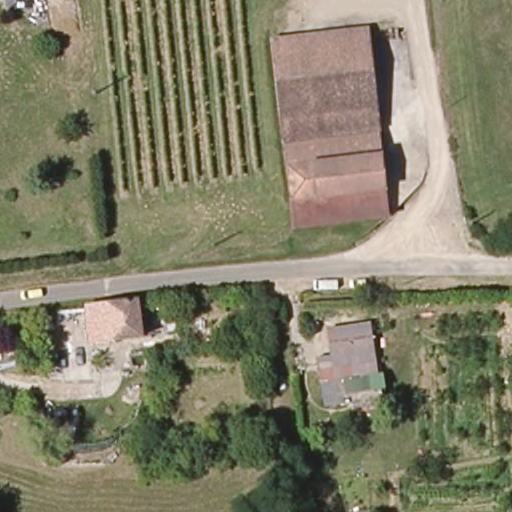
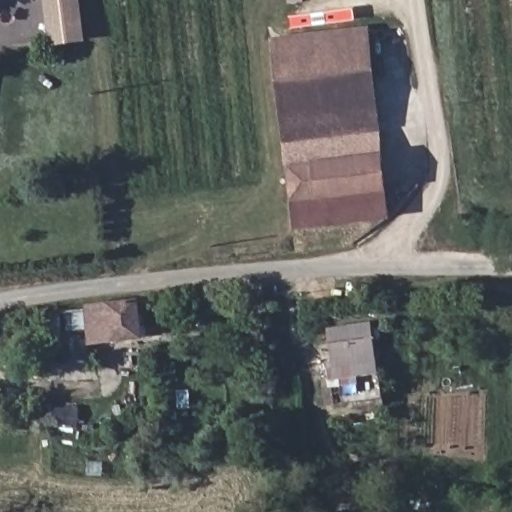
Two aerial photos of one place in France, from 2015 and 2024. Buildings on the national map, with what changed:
new [(50,45),(44,0),(77,0),(81,41),(50,45)]
unchanged [(271,42),(363,31),(372,113),(283,125),(271,42)]
unchanged [(283,125),(372,113),(383,212),(298,225),(283,125)]
unchanged [(132,341),(132,347),(122,348),(119,342),(95,343),(92,306),(140,302),(142,340),(132,341)]
unchanged [(335,381),(328,335),(370,330),(375,375),(335,381)]

